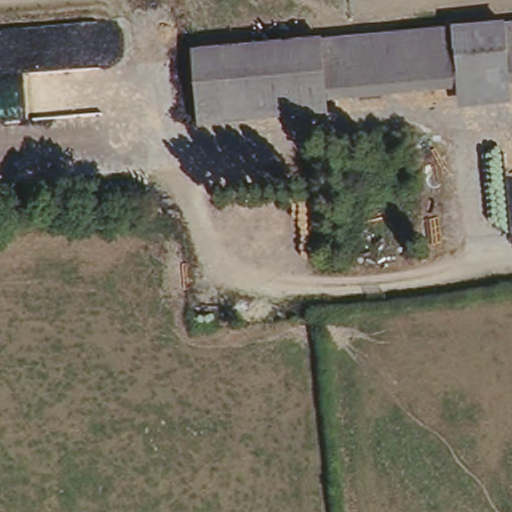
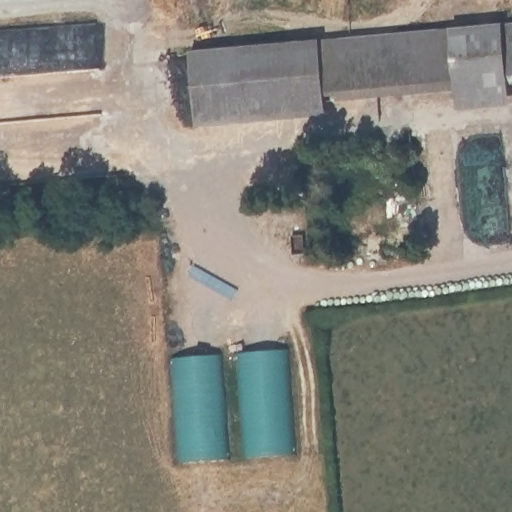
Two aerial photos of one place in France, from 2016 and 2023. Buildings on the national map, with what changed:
unchanged [(457,88),(333,95),(333,110),(200,121),(192,44),(512,19),(512,104),(460,108),(457,88)]
new [(246,353),(255,353),(263,353),(284,352),(291,455),(253,458),(246,353)]
new [(175,357),(216,356),(224,460),(183,464),(175,357)]

